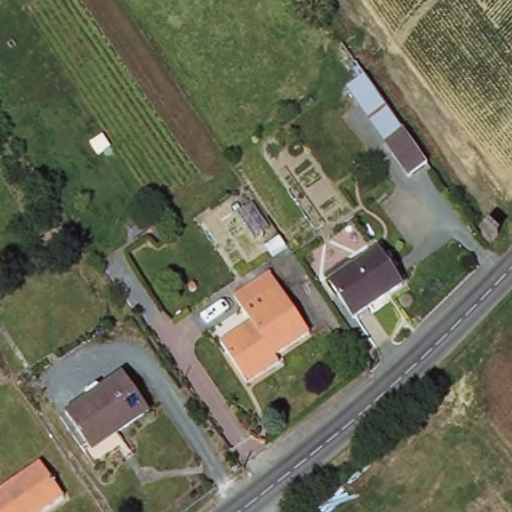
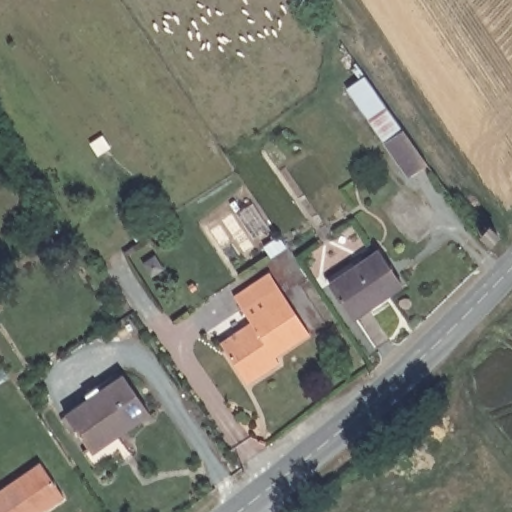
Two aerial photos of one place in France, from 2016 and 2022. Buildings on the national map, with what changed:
unchanged [(406,130),(432,166),(407,178),(385,143),(347,88),(366,77),(406,130)]
unchanged [(380,249),(406,289),(355,322),(332,280),(380,249)]
unchanged [(312,334),(279,356),(282,364),(249,387),(221,342),(251,323),(236,296),(271,273),(312,334)]
unchanged [(154,416),(93,455),(67,415),(124,373),(154,416)]
unchanged [(67,499),(46,512),(0,512),(0,491),(41,461),(67,499)]

